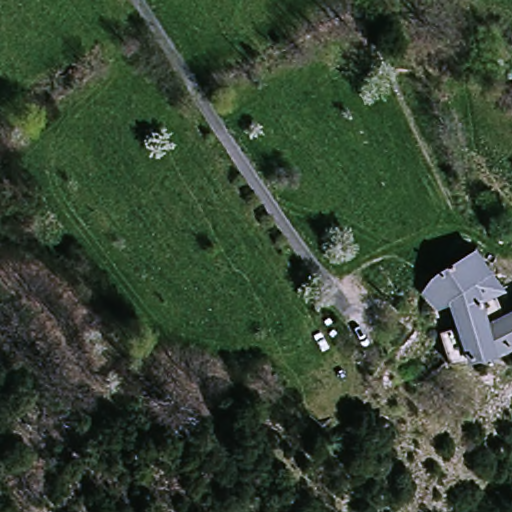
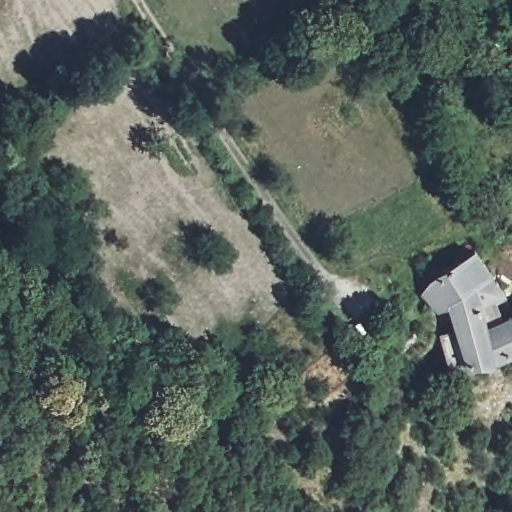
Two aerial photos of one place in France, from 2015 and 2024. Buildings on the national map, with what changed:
unchanged [(492,294),(500,311),(512,305),(512,342),(467,359),(450,301),(439,307),(423,287),(475,245),(504,287),(492,294)]

